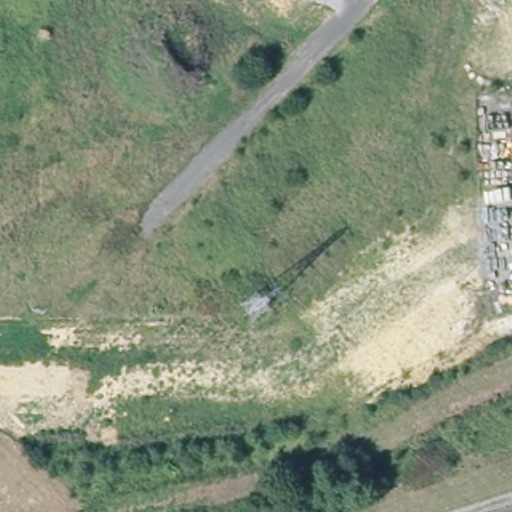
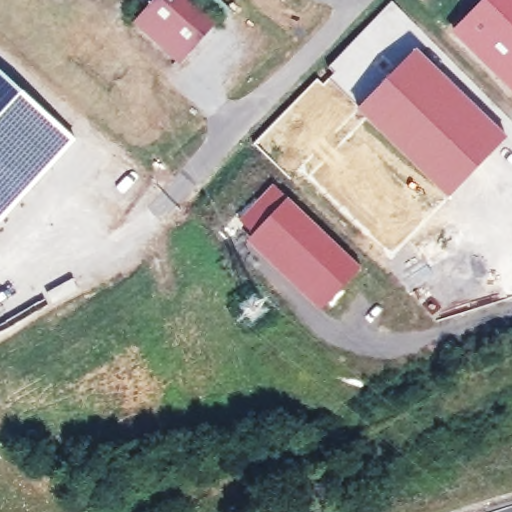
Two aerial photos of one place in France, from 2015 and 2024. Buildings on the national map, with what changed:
new [(135,22),(155,0),(194,0),(218,22),(180,64),(135,22)]
new [(483,0),(512,0),(512,91),(451,31),(483,0)]
new [(415,46),(505,136),(447,194),(357,104),(415,46)]
new [(69,143),(0,218),(0,78),(69,143)]
new [(273,182),(361,266),(319,310),(246,239),(251,233),(237,218),(273,182)]

